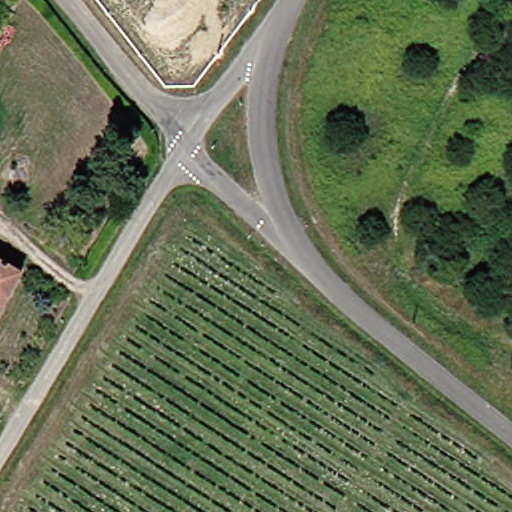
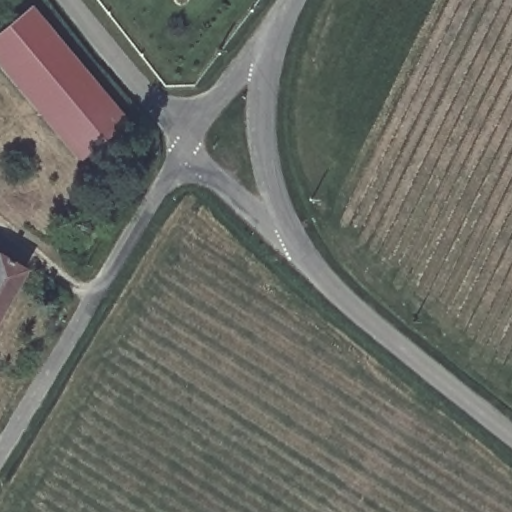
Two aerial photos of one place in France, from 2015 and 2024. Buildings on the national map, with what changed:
new [(28,7),(125,123),(87,152),(0,52),(0,30),(28,7)]
unchanged [(13,270),(0,291),(0,262),(13,270)]

